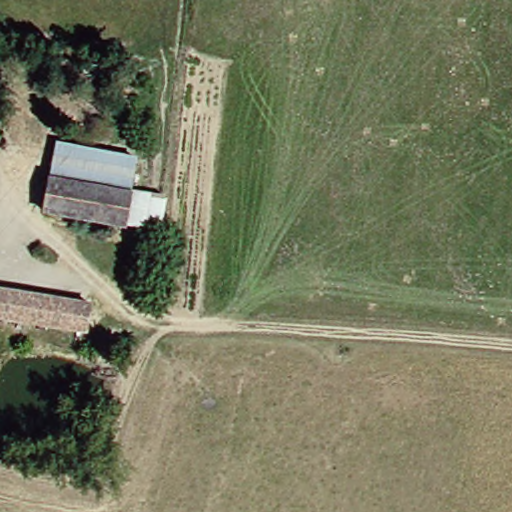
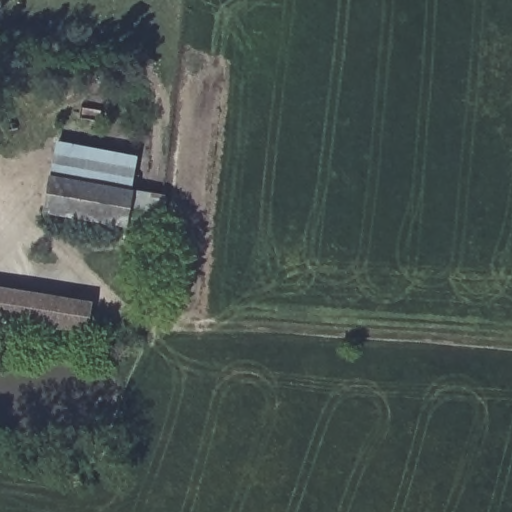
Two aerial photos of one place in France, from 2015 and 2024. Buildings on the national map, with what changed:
unchanged [(61,140),(140,156),(133,192),(53,177),(61,140)]
unchanged [(133,192),(125,227),(46,211),(53,177),(133,192)]
unchanged [(133,192),(169,200),(162,235),(125,227),(133,192)]
unchanged [(86,305),(82,333),(0,322),(0,293),(86,305)]

